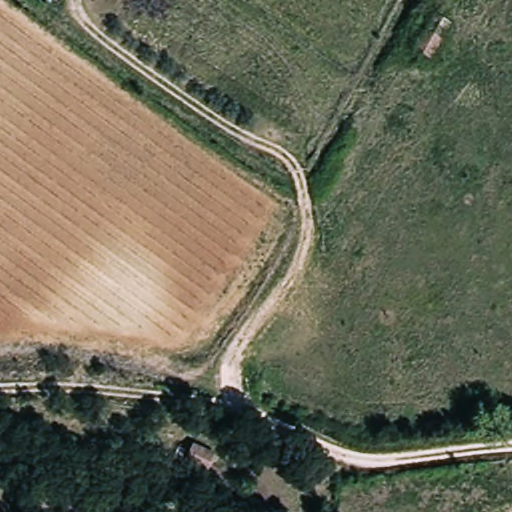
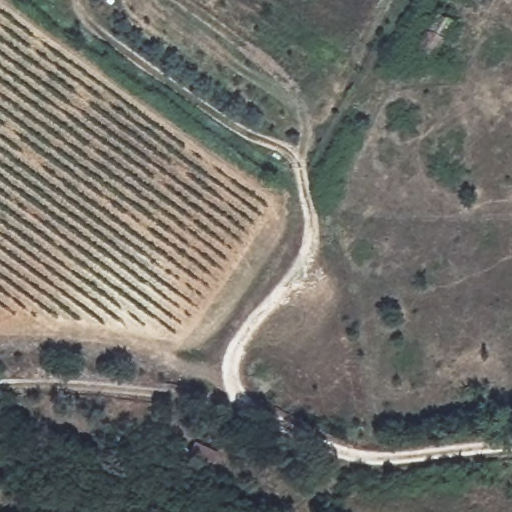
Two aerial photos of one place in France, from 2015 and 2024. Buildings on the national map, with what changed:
unchanged [(460,42),(435,73),(422,62),(446,31),(460,42)]
unchanged [(213,456),(203,474),(180,463),(190,445),(213,456)]

